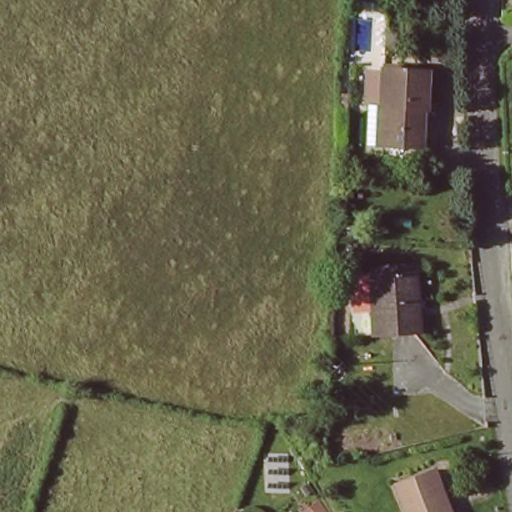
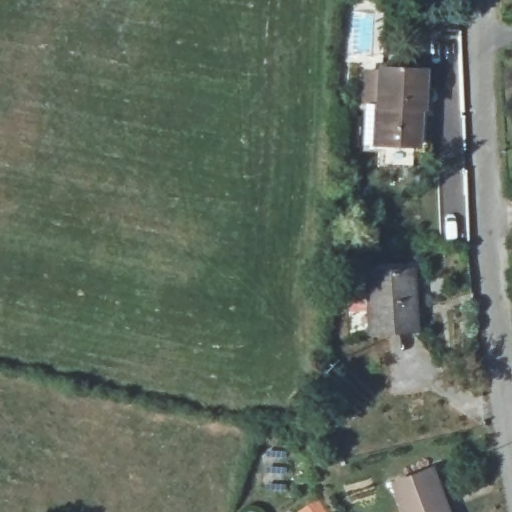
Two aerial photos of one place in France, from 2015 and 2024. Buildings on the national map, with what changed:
unchanged [(425,72),(423,112),(417,111),(416,121),(420,121),(418,147),(380,146),(382,110),(377,110),(379,71),(425,72)]
unchanged [(367,336),(362,276),(408,272),(410,289),(412,315),(413,332),(367,336)]
unchanged [(395,490),(432,471),(452,512),(405,512),(395,490)]

